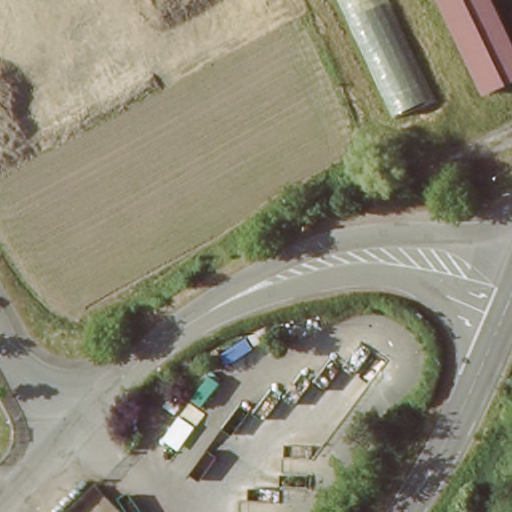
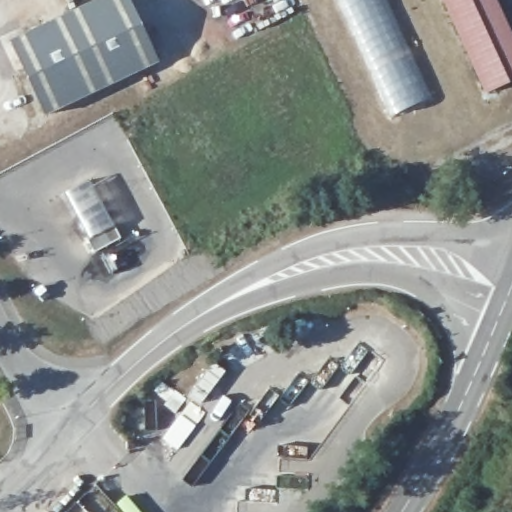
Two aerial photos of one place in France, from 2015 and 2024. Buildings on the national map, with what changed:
new [(10,41),(96,0),(127,0),(157,64),(46,115),(10,41)]
unchanged [(338,0),(389,0),(435,98),(393,116),(338,0)]
unchanged [(446,0),(493,0),(502,20),(512,42),(512,79),(487,90),(475,61),(447,1),(446,0)]
new [(63,194),(89,180),(121,237),(95,251),(63,194)]
unchanged [(185,404),(174,417),(165,409),(176,396),(185,404)]
unchanged [(163,441),(192,406),(205,416),(176,454),(163,441)]

